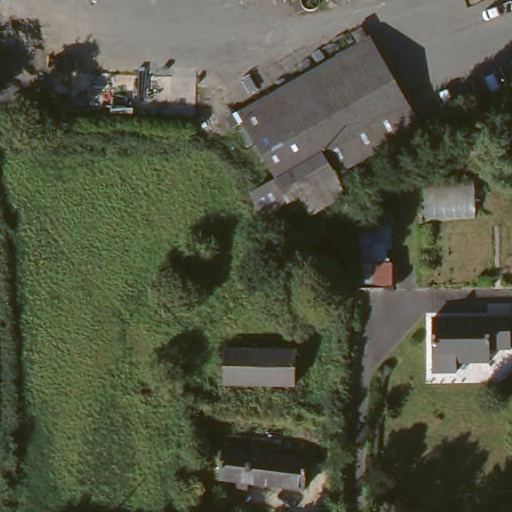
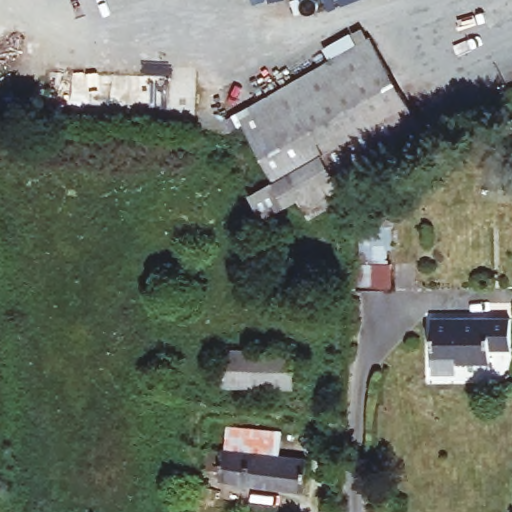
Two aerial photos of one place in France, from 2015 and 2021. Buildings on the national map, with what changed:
unchanged [(262,190),(279,180),(246,115),(372,41),(407,105),(323,154),(337,180),(342,191),(312,209),(302,194),(272,210),(262,190)]
unchanged [(407,105),(422,132),(337,180),(323,154),(407,105)]
demolished [(428,219),(427,186),(480,185),(481,218),(428,219)]
unchanged [(275,221),(331,207),(333,222),(278,236),(275,221)]
unchanged [(360,219),(391,219),(388,294),(355,291),(360,219)]
unchanged [(435,317),(512,320),(512,351),(492,350),(491,362),(458,364),(457,377),(434,375),(435,317)]
unchanged [(231,351),(297,352),(297,387),(229,386),(231,351)]
unchanged [(216,490),(216,457),(234,457),(316,457),(315,488),(235,490),(225,490),(216,490)]
unchanged [(311,512),(311,505),(337,500),(338,512),(311,512)]

